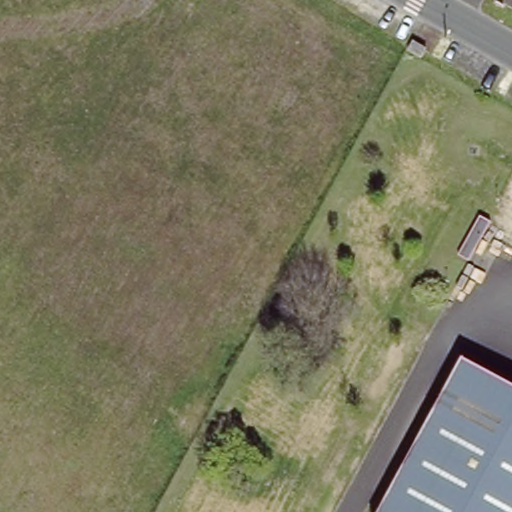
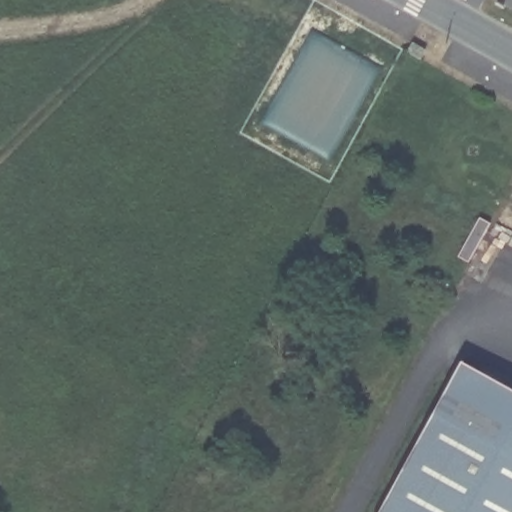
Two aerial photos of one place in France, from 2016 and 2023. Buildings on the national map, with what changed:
unchanged [(422,48),(434,54),(429,62),(418,55),(422,48)]
unchanged [(512,382),(512,453),(436,411),(466,357),(512,382)]
unchanged [(436,411),(512,453),(512,512),(380,512),(436,411)]

